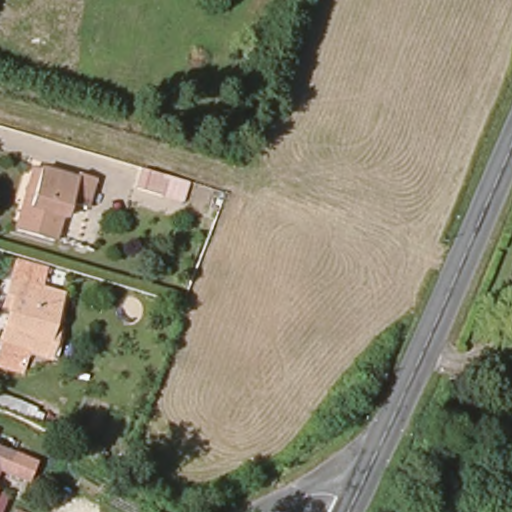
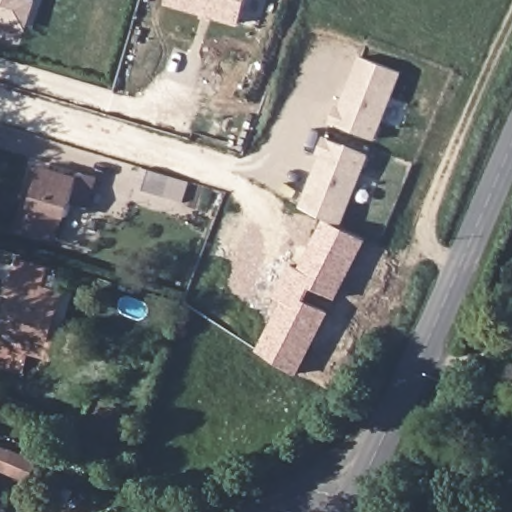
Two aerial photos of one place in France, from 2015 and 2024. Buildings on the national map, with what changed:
new [(23,21),(0,17),(0,0),(27,0),(28,4),(23,21)]
new [(165,5),(166,0),(248,0),(240,26),(165,5)]
new [(360,56),(402,73),(376,140),(334,124),(360,56)]
new [(330,140),(368,155),(341,224),(304,210),(330,140)]
unchanged [(76,170),(95,175),(87,202),(71,199),(67,212),(61,210),(54,236),(16,225),(25,198),(37,164),(43,166),(75,175),(76,170)]
unchanged [(158,172),(152,192),(128,185),(133,165),(158,172)]
new [(338,299),(312,288),(306,300),(331,311),(299,375),(258,350),(282,300),(273,295),(290,263),(299,268),(323,219),(367,240),(338,299)]
unchanged [(52,356),(29,348),(21,346),(14,366),(0,362),(0,335),(8,310),(2,306),(6,293),(17,255),(58,270),(47,307),(54,310),(65,312),(52,356)]
demolished [(13,447),(0,478),(0,442),(13,447)]
new [(28,480),(3,470),(0,477),(0,446),(37,461),(28,480)]
new [(10,495),(3,512),(0,512),(0,491),(10,495)]

